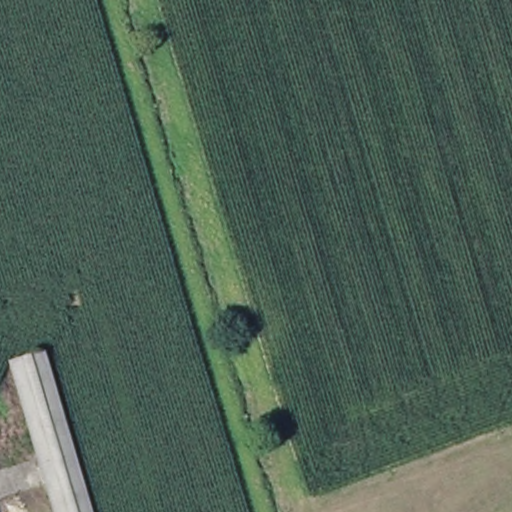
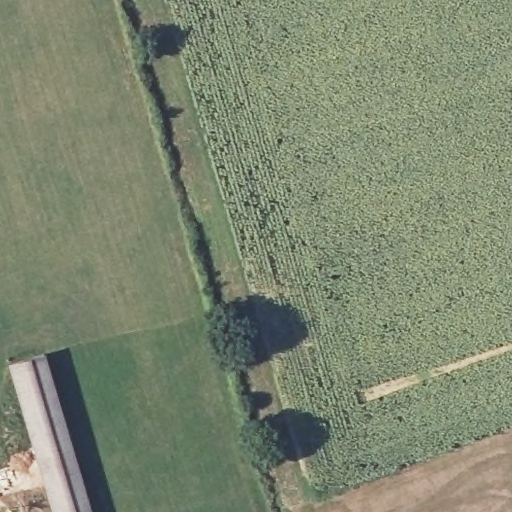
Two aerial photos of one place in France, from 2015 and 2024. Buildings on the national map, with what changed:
unchanged [(92,512),(55,512),(10,367),(42,356),(92,512)]

